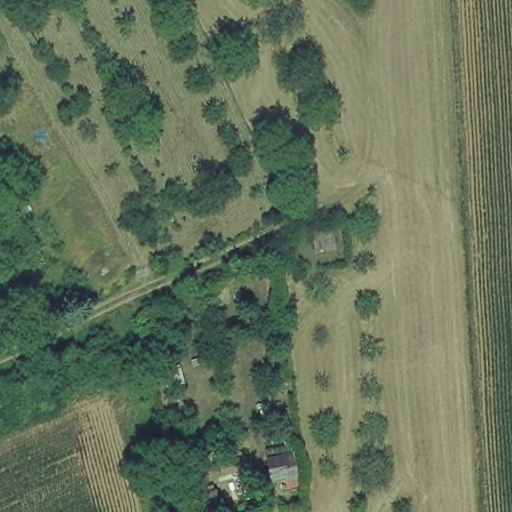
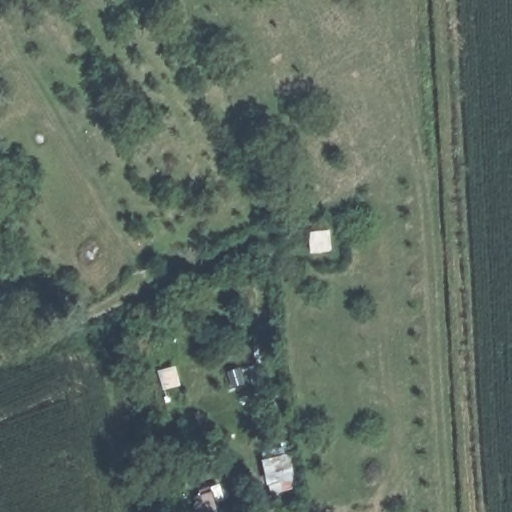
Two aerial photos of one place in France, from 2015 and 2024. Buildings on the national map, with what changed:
unchanged [(341,253),(316,255),(315,231),(340,230),(341,253)]

